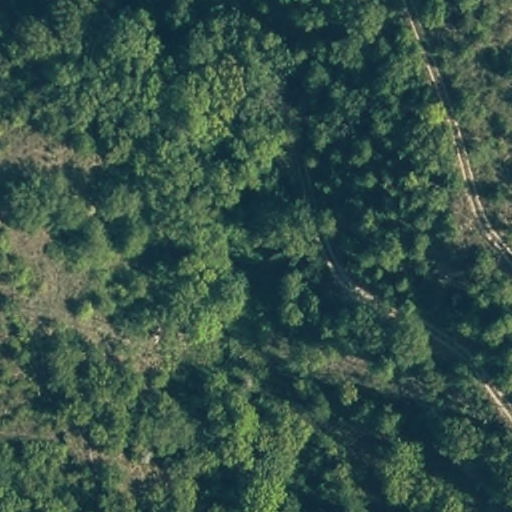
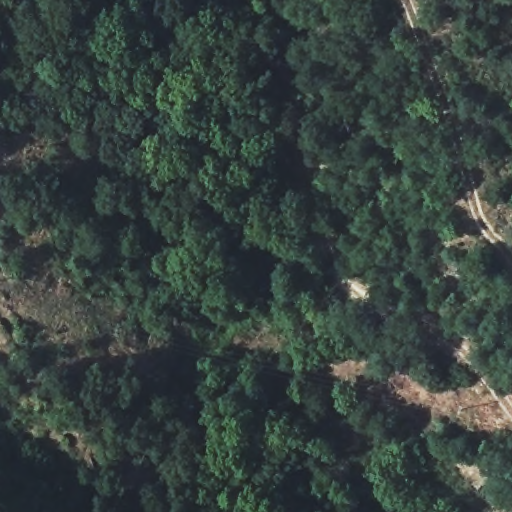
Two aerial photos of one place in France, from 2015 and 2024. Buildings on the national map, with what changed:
[]

